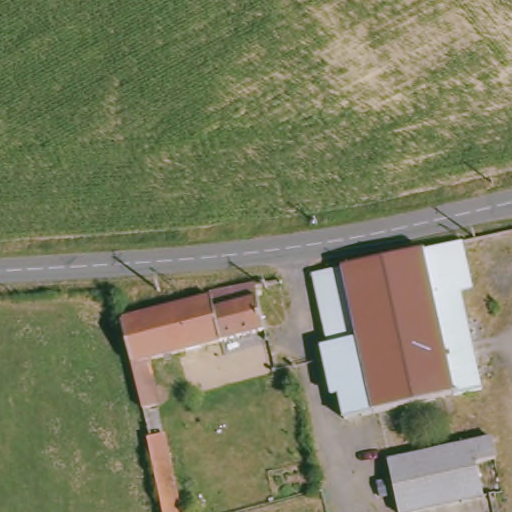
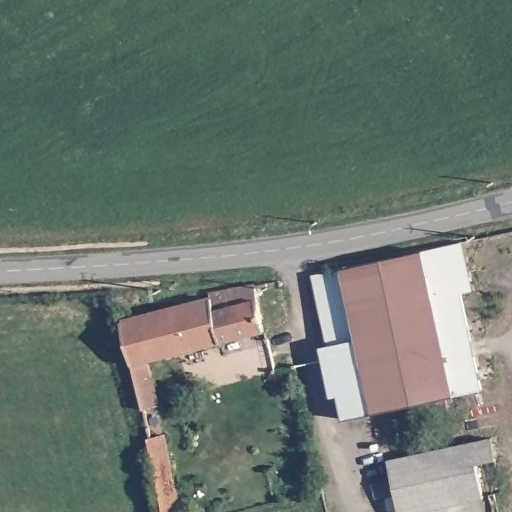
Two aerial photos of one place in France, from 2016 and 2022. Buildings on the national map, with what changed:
unchanged [(492,384),(342,418),(310,271),(403,252),(460,239),(492,384)]
unchanged [(267,327),(150,358),(162,403),(145,407),(122,319),(212,296),(212,293),(255,282),(267,327)]
unchanged [(183,512),(164,512),(149,432),(165,428),(183,512)]
unchanged [(472,462),(479,496),(404,512),(397,512),(386,457),(489,435),(493,457),(472,462)]

